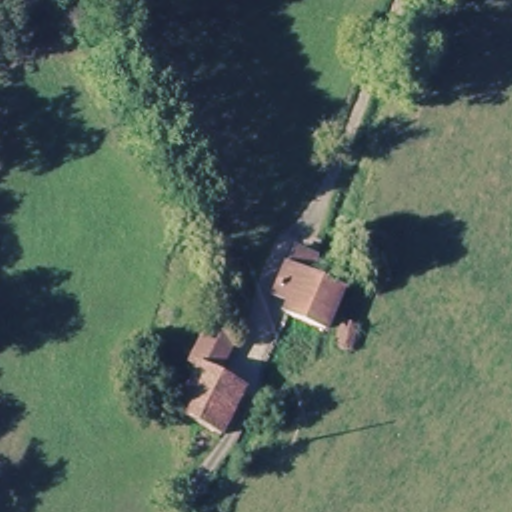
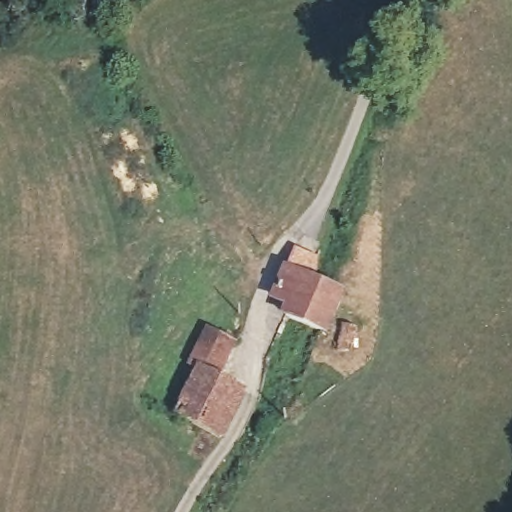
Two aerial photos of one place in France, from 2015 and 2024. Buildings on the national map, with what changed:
unchanged [(335,294),(318,327),(279,313),(282,306),(271,300),(282,270),(290,250),(312,258),(304,279),(323,288),(335,294)]
unchanged [(188,363),(203,326),(228,338),(211,374),(199,368),(188,363)]
unchanged [(358,349),(345,348),(348,329),(362,330),(358,349)]
unchanged [(179,416),(199,368),(211,374),(244,389),(222,436),(179,416)]

